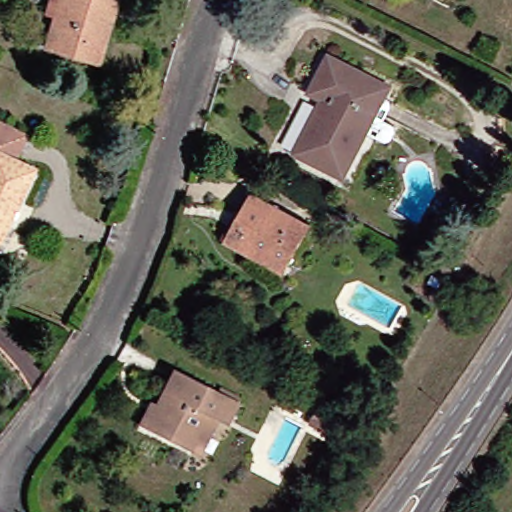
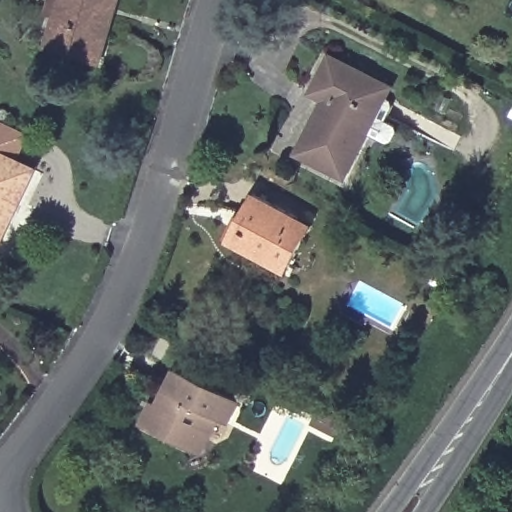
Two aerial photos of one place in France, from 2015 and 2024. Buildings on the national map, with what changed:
unchanged [(38,15),(43,0),(110,0),(91,65),(44,51),(36,49),(46,16),(38,15)]
unchanged [(392,93),(376,122),(389,129),(379,145),(359,134),(335,180),(287,155),(315,101),(301,94),(321,56),(383,89),(392,93)]
unchanged [(20,136),(7,161),(26,171),(0,224),(0,127),(20,136)]
unchanged [(308,226),(280,275),(222,243),(250,193),(308,226)]
unchanged [(451,193),(464,200),(455,216),(442,208),(451,193)]
unchanged [(184,452),(137,428),(130,425),(141,402),(148,406),(154,394),(166,370),(230,402),(218,425),(210,422),(193,456),(184,452)]

